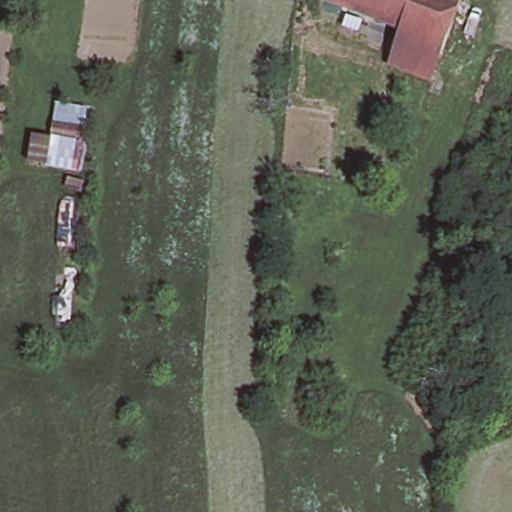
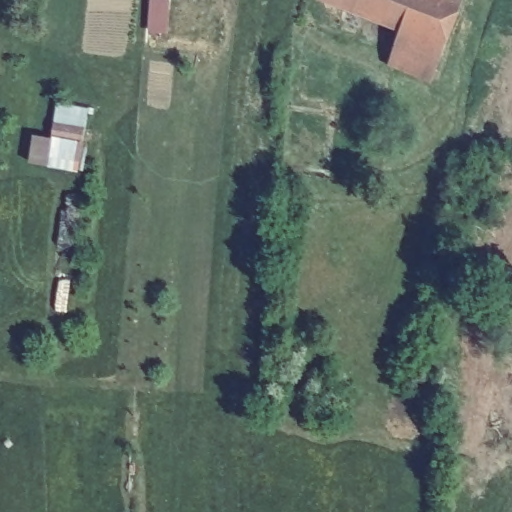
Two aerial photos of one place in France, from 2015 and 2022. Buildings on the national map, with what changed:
new [(166,33),(148,32),(150,0),(160,0),(169,1),(166,33)]
unchanged [(374,0),(366,20),(317,0),(374,0)]
unchanged [(400,33),(366,20),(374,0),(458,0),(463,2),(443,59),(440,58),(400,43),(397,42),(400,33)]
unchanged [(430,85),(390,68),(400,43),(440,58),(430,85)]
unchanged [(85,126),(83,140),(50,135),(52,122),(85,126)]

